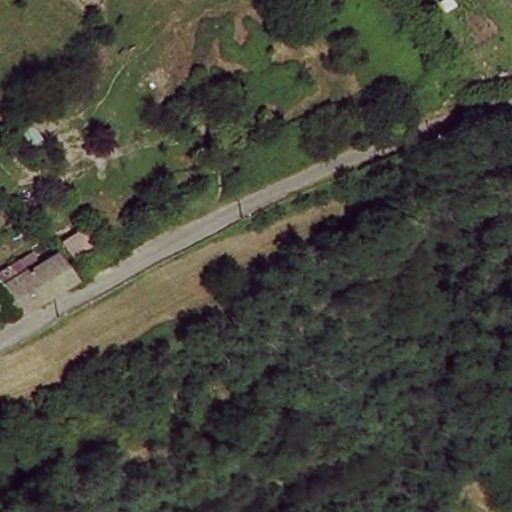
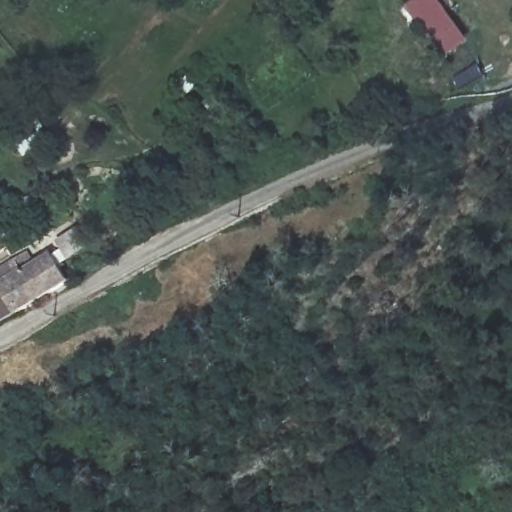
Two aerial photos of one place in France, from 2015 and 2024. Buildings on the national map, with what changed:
new [(470,40),(446,58),(405,5),(412,0),(439,0),(470,40)]
unchanged [(218,136),(248,122),(273,174),(245,187),(218,136)]
unchanged [(0,287),(0,277),(16,267),(19,270),(49,250),(66,274),(36,294),(15,308),(0,287)]

